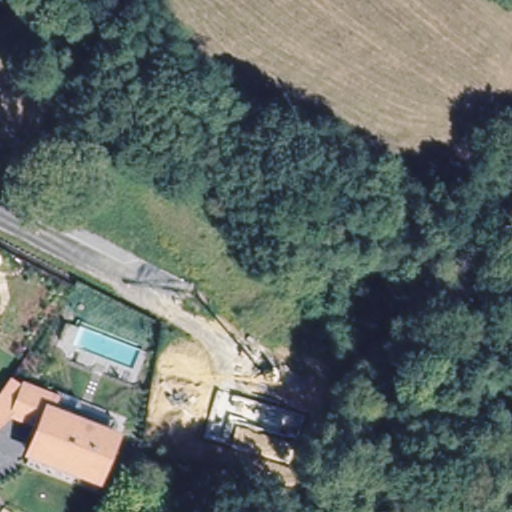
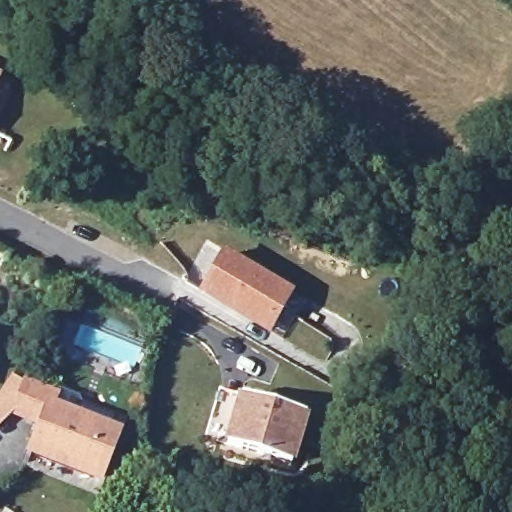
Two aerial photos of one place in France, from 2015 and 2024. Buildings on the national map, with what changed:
new [(1,75),(0,78),(0,75),(1,75)]
new [(294,291),(269,335),(196,294),(222,251),(294,291)]
unchanged [(0,426),(0,391),(10,376),(21,382),(22,380),(59,395),(57,405),(115,428),(111,440),(43,414),(48,402),(19,390),(8,418),(0,426)]
unchanged [(111,440),(94,482),(26,455),(36,430),(8,418),(19,390),(48,402),(43,414),(111,440)]
new [(219,395),(306,420),(292,467),(228,449),(235,425),(212,419),(219,395)]
unchanged [(160,500),(152,512),(143,512),(127,501),(138,485),(160,500)]

